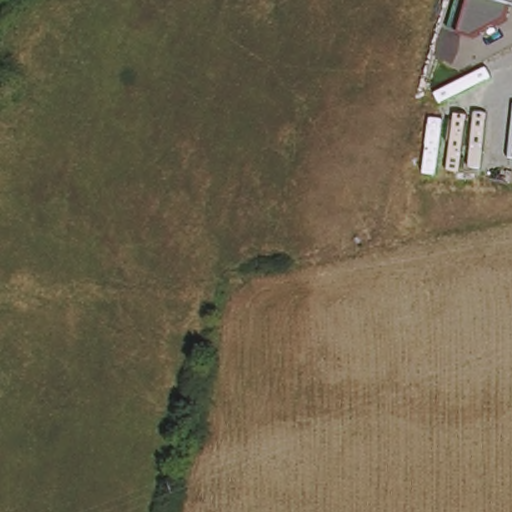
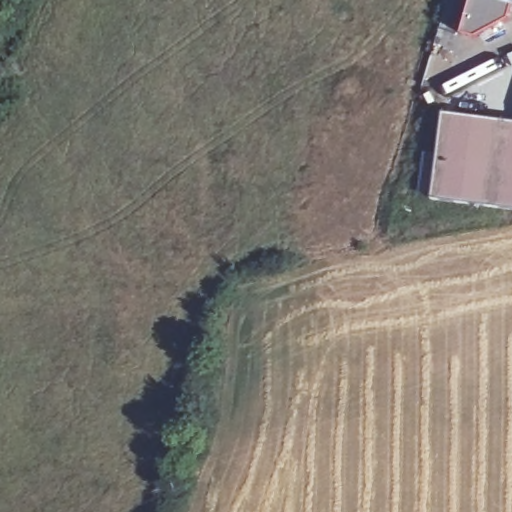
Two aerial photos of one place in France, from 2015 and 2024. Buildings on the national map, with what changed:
unchanged [(464,35),(473,0),(512,0),(512,2),(509,17),(464,35)]
new [(495,63),(507,90),(452,111),(440,85),(495,63)]
new [(512,211),(432,200),(432,196),(420,194),(425,154),(439,155),(445,114),(512,124),(512,211)]

